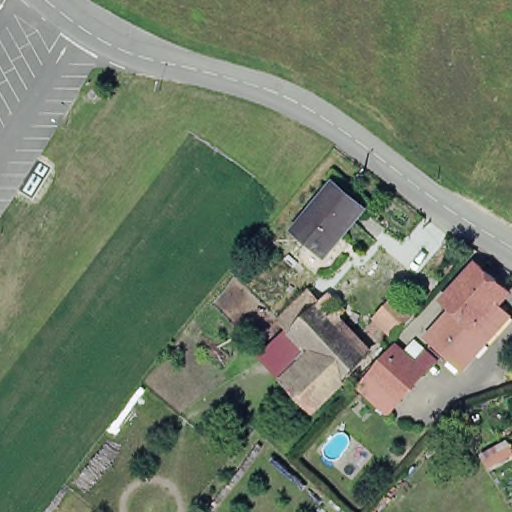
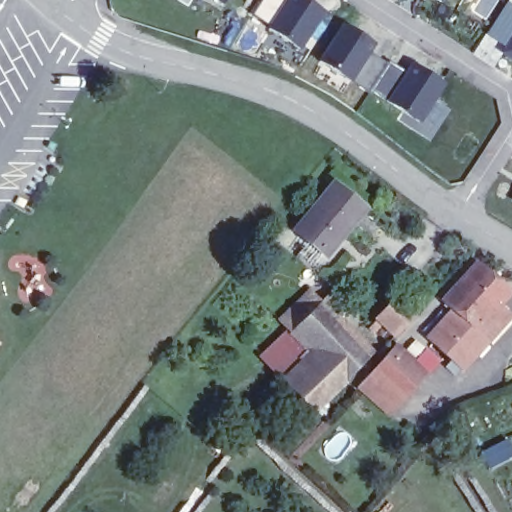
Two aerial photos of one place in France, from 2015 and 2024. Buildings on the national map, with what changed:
new [(218,0),(229,0),(226,5),(218,0)]
new [(303,51),(272,29),(292,0),(309,0),(325,13),(303,51)]
new [(437,0),(449,0),(446,5),(437,0)]
new [(512,60),(502,54),(506,46),(490,38),(508,1),(512,3),(512,60)]
new [(354,84),(318,62),(346,24),(379,43),(354,84)]
new [(450,80),(425,126),(392,105),(416,64),(450,80)]
unchanged [(330,267),(305,245),(312,236),(297,223),(337,176),(368,202),(346,229),(356,237),(330,267)]
new [(512,198),(512,201),(510,200),(512,198)]
unchanged [(473,264),(505,292),(494,304),(470,330),(447,309),(438,302),(473,264)]
unchanged [(341,374),(320,352),(291,323),(280,310),(311,280),(322,293),(330,287),(345,303),(333,314),(367,349),(341,374)]
unchanged [(405,284),(423,307),(395,333),(376,312),(405,284)]
unchanged [(494,304),(507,316),(458,370),(422,338),(447,309),(470,330),(494,304)]
unchanged [(357,386),(367,375),(366,374),(393,344),(423,373),(397,402),(386,414),(357,386)]
unchanged [(341,374),(312,403),(292,381),(320,352),(341,374)]

